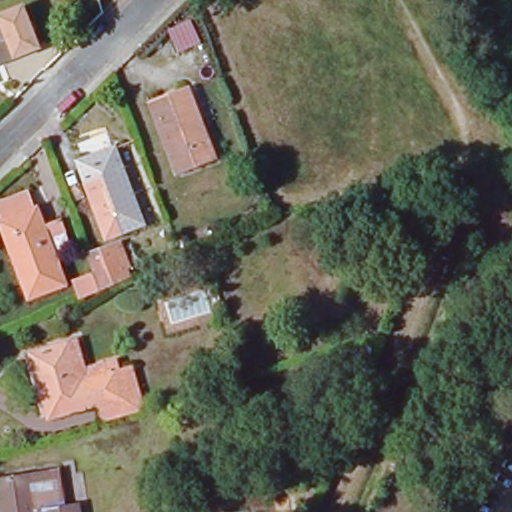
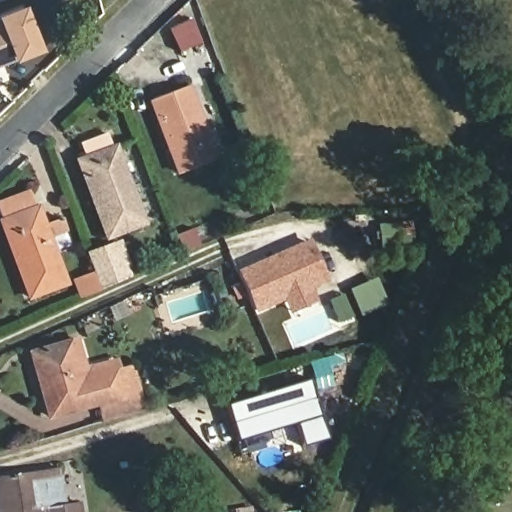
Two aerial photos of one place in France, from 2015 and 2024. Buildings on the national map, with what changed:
unchanged [(1,23),(0,20),(0,17),(22,8),(39,49),(16,57),(2,61),(0,62),(0,24),(1,23)]
new [(189,22),(199,44),(176,53),(166,31),(189,22)]
unchanged [(187,89),(213,162),(179,174),(152,101),(187,89)]
unchanged [(115,144),(142,217),(105,230),(79,158),(115,144)]
unchanged [(60,225),(66,238),(46,245),(63,289),(29,300),(0,229),(0,212),(28,201),(34,215),(40,232),(60,225)]
unchanged [(96,272),(88,251),(111,241),(124,276),(101,285),(84,293),(77,280),(96,272)]
new [(304,244),(320,282),(250,312),(234,275),(304,244)]
unchanged [(75,336),(85,366),(116,358),(120,368),(132,365),(145,412),(99,425),(93,410),(45,422),(22,352),(75,336)]
new [(237,443),(226,406),(309,381),(326,439),(299,447),(293,426),(237,443)]
unchanged [(30,478),(34,512),(0,512),(0,482),(30,478)]
unchanged [(75,507),(76,512),(42,512),(75,507)]

